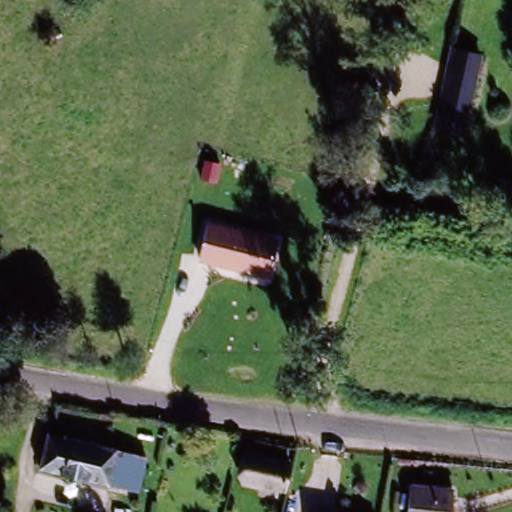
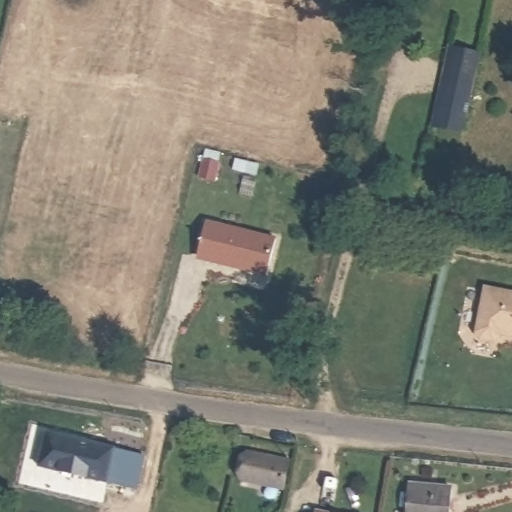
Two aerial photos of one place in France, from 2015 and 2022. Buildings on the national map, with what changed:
unchanged [(460,141),(433,134),(451,59),(477,66),(460,141)]
unchanged [(207,219),(277,235),(269,274),(197,263),(207,219)]
new [(486,286),(512,292),(512,335),(500,332),(499,335),(493,339),(480,336),(476,330),(486,286)]
unchanged [(136,491),(125,489),(40,471),(47,439),(116,452),(143,458),(136,491)]
unchanged [(250,460),(290,469),(285,496),(242,484),(250,460)]
unchanged [(407,488),(453,495),(451,512),(404,512),(407,488)]

